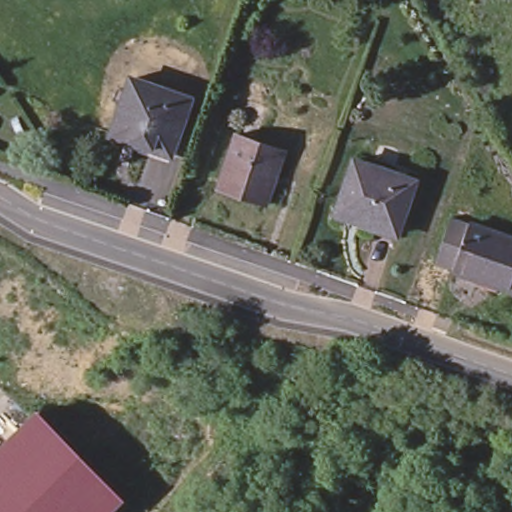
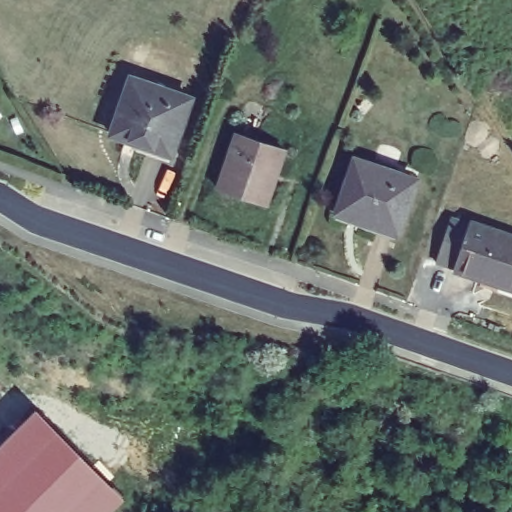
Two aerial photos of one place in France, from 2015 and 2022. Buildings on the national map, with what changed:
unchanged [(183,94),(162,151),(120,136),(123,125),(110,120),(123,73),(183,94)]
unchanged [(282,147),(262,201),(215,184),(234,130),(282,147)]
unchanged [(405,176),(387,230),(366,223),(369,214),(329,200),(344,156),(405,176)]
unchanged [(512,290),(455,271),(456,269),(438,263),(452,217),(512,236),(512,290)]
unchanged [(114,512),(0,512),(0,448),(37,411),(126,500),(114,512)]

